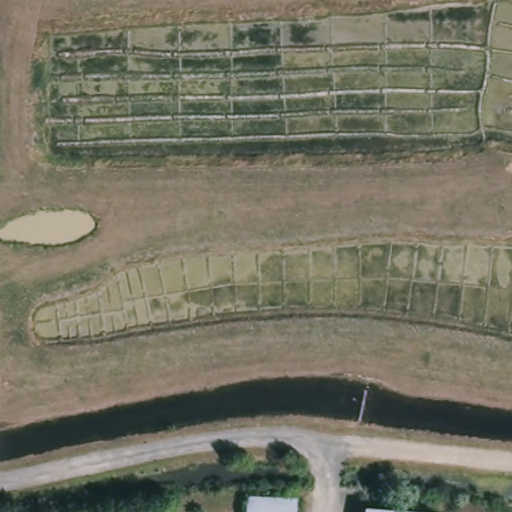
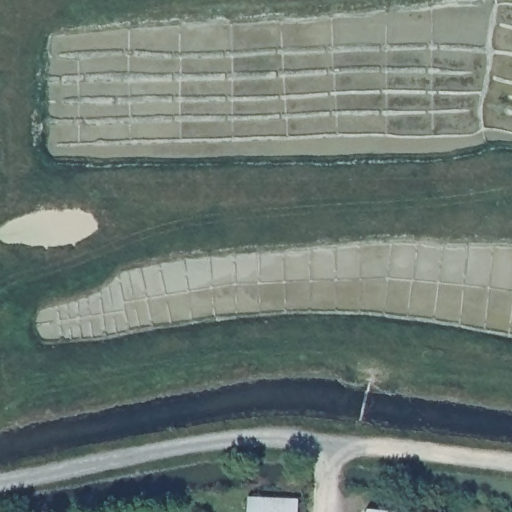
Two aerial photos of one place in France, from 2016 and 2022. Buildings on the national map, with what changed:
unchanged [(297,512),(249,512),(250,497),(298,501),(297,512)]

